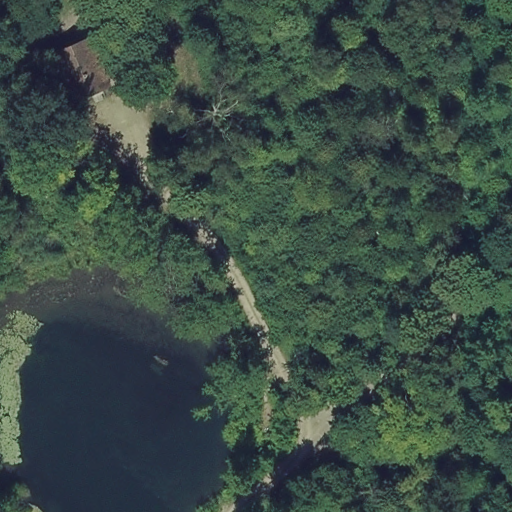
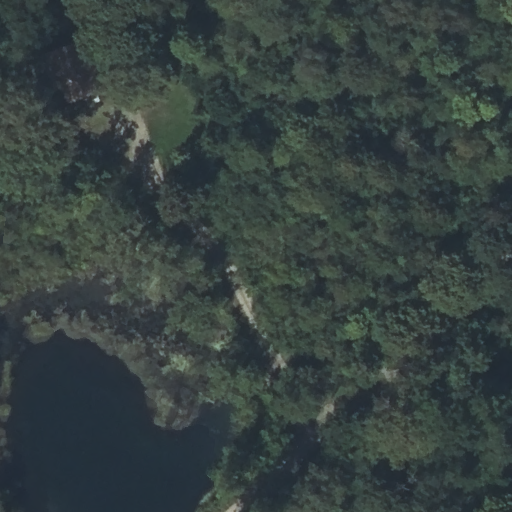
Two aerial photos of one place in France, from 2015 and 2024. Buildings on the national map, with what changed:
unchanged [(55,55),(93,39),(103,69),(111,89),(74,104),(66,84),(55,55)]

